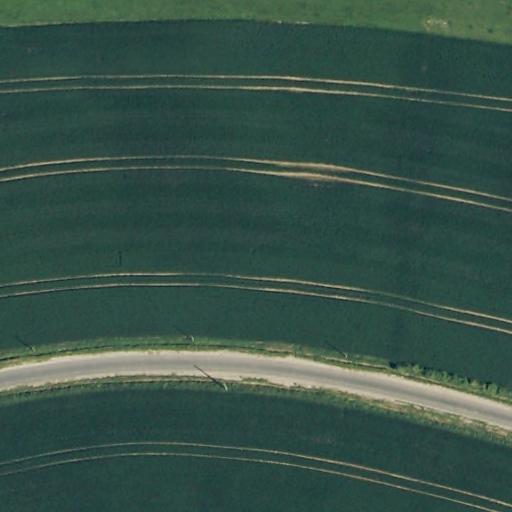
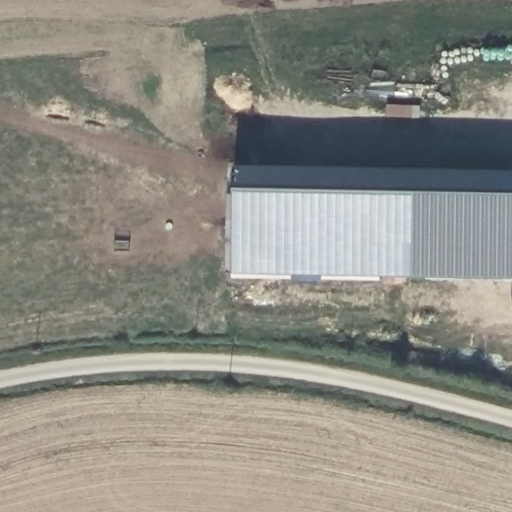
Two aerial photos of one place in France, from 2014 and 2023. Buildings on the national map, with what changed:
new [(233,164),(512,170),(512,279),(231,272),(233,164)]

